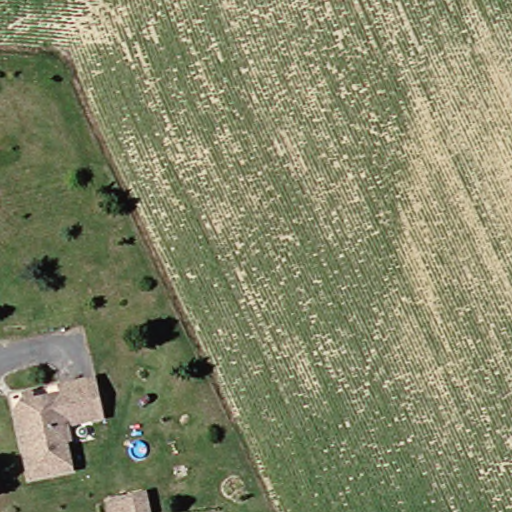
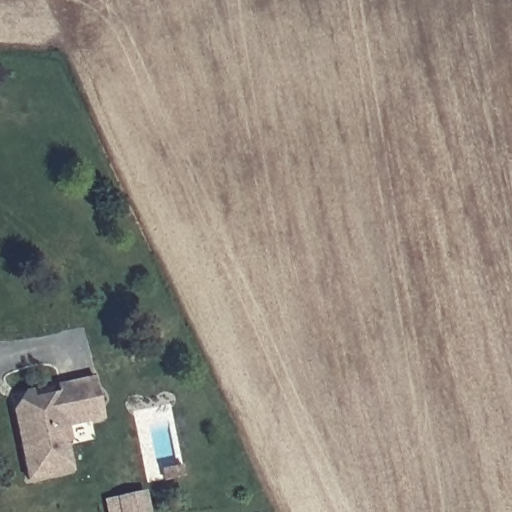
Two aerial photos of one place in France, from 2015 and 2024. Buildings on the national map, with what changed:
unchanged [(64,383),(99,375),(108,418),(76,425),(78,436),(71,438),(78,469),(33,479),(25,445),(18,410),(32,389),(36,389),(39,397),(65,390),(64,383)]
unchanged [(154,512),(108,512),(106,499),(150,489),(154,512)]

